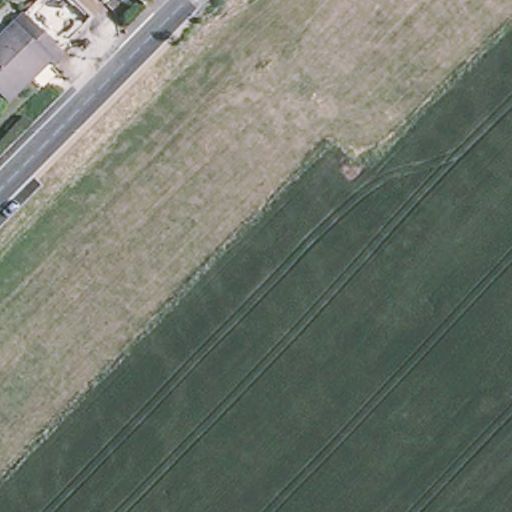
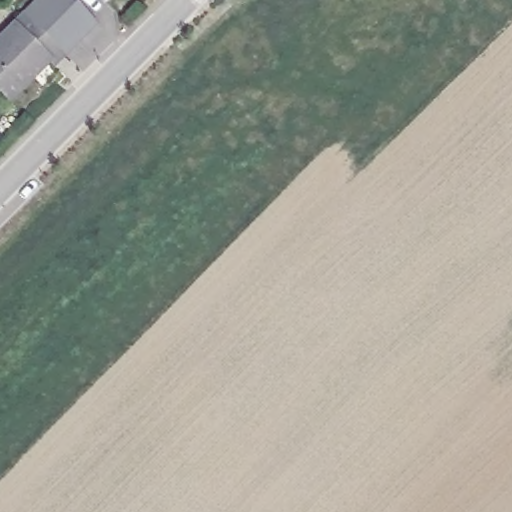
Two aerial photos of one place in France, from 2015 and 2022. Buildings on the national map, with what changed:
new [(64,55),(22,14),(35,0),(76,0),(97,21),(64,55)]
unchanged [(52,65),(47,61),(7,101),(0,94),(0,36),(22,14),(64,55),(52,65)]

